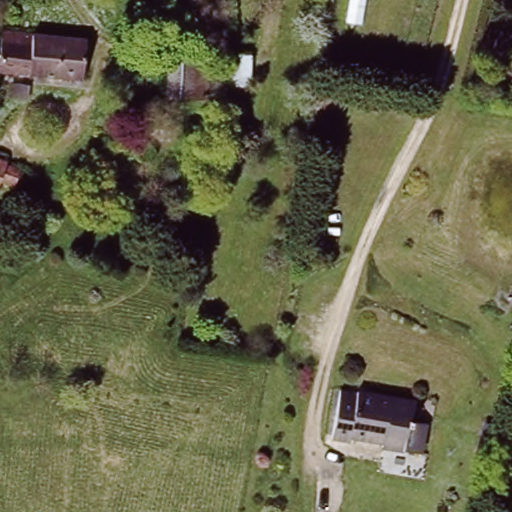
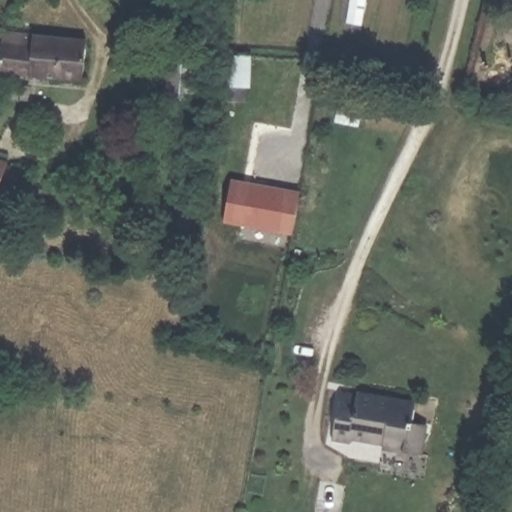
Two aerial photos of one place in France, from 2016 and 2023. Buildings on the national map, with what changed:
unchanged [(87,47),(83,85),(2,79),(6,39),(33,41),(87,47)]
unchanged [(202,55),(198,97),(175,94),(177,53),(202,55)]
unchanged [(237,70),(237,89),(221,89),(222,70),(237,70)]
unchanged [(7,166),(20,170),(16,185),(2,182),(0,189),(0,161),(7,163),(7,166)]
new [(232,180),(300,192),(292,233),(225,221),(232,180)]
unchanged [(425,432),(421,457),(382,450),(382,446),(351,440),(350,445),(332,441),(341,394),(357,397),(358,395),(412,403),(410,422),(427,425),(425,432)]

